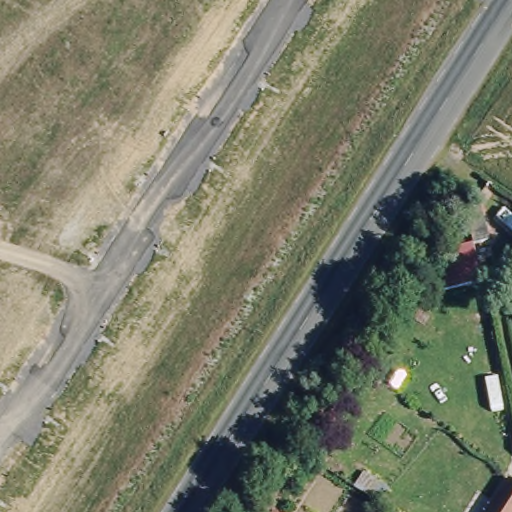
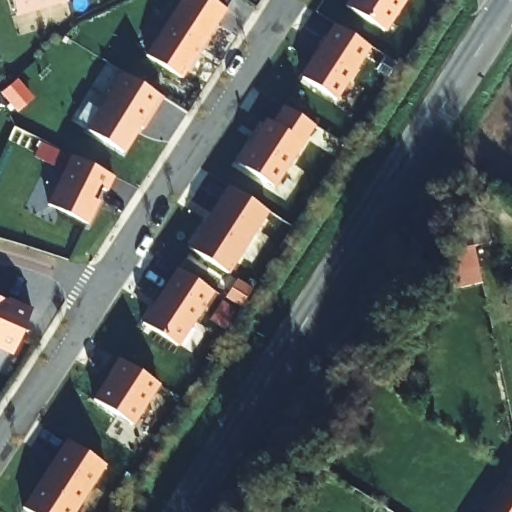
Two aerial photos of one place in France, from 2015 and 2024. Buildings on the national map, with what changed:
new [(68,0),(68,4),(18,18),(13,0),(68,0)]
new [(182,81),(148,59),(186,0),(209,0),(227,12),(182,81)]
new [(407,0),(386,35),(347,8),(352,0),(407,0)]
new [(371,47),(337,99),(301,75),(333,24),(371,47)]
new [(125,156),(90,134),(125,76),(164,100),(144,132),(141,130),(125,156)]
new [(239,164),(266,119),(273,122),(284,106),(314,126),(275,186),(239,164)]
new [(113,177),(90,229),(49,207),(74,157),(113,177)]
new [(231,190),(269,214),(229,276),(191,252),(209,224),(211,223),(215,217),(213,217),(231,190)]
new [(471,246),(480,284),(455,290),(446,252),(471,246)]
new [(215,295),(180,352),(142,329),(180,271),(215,295)]
new [(8,305),(10,302),(32,313),(14,357),(0,350),(0,301),(8,305)]
new [(133,425),(93,398),(119,357),(160,385),(133,425)]
new [(492,417),(483,383),(495,380),(503,413),(492,417)]
new [(25,511),(46,478),(47,478),(52,470),(67,442),(107,467),(78,512),(27,512),(25,511)]
unchanged [(512,485),(512,512),(490,512),(508,483),(508,482),(512,485)]

